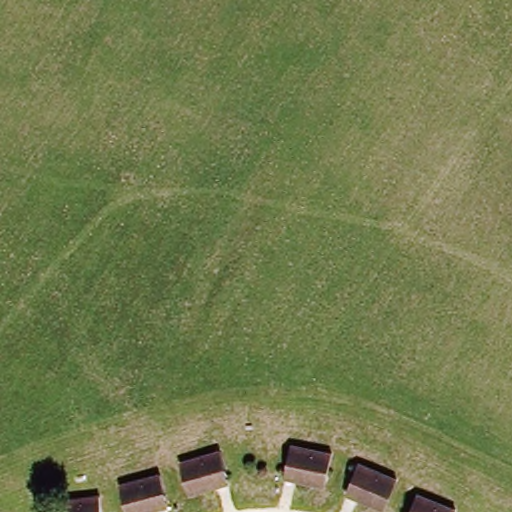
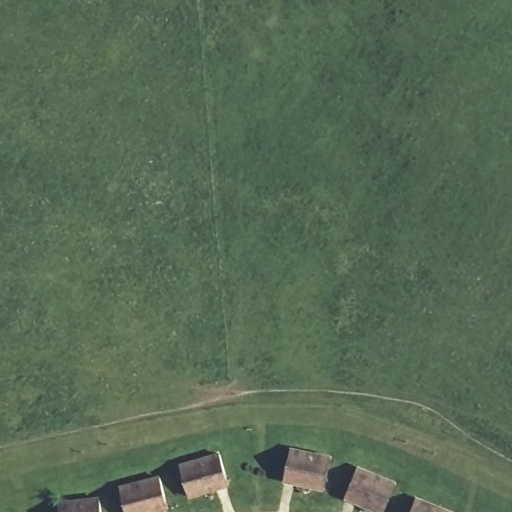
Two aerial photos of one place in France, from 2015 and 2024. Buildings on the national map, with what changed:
unchanged [(285,470),(290,449),(332,457),(325,490),(300,484),(283,480),(285,470)]
unchanged [(213,485),(189,492),(180,461),(220,450),(227,471),(229,481),(213,485)]
unchanged [(348,482),(357,462),(396,478),(384,508),(360,500),(345,492),(348,482)]
unchanged [(127,512),(120,483),(161,473),(166,495),(168,504),(154,508),(136,512),(127,512)]
unchanged [(100,495),(102,512),(60,512),(59,499),(100,495)]
unchanged [(452,512),(410,512),(415,497),(452,512)]

